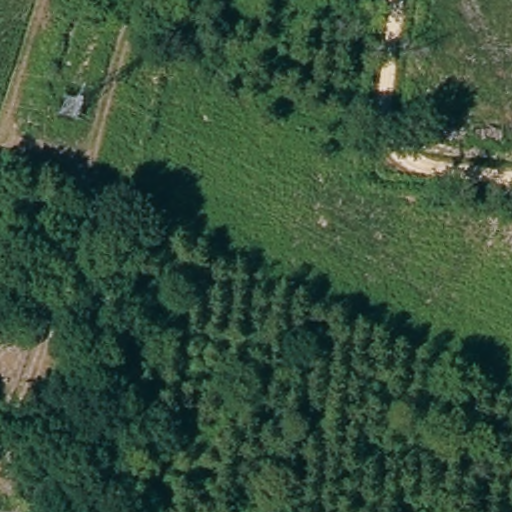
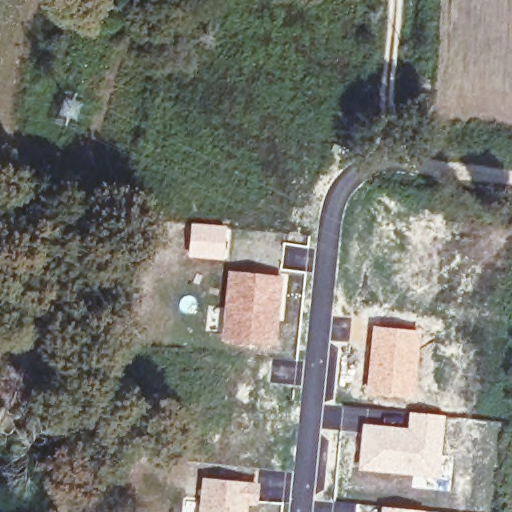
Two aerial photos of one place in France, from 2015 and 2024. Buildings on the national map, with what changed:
new [(191,222),(228,226),(226,260),(188,257),(191,222)]
new [(227,270),(282,276),(277,346),(220,340),(227,270)]
new [(373,325),(422,331),(415,397),(365,393),(373,325)]
new [(362,423),(407,427),(409,411),(445,415),(439,478),(358,470),(362,423)]
new [(259,483),(257,503),(249,502),(248,512),(199,512),(202,476),(259,483)]
new [(426,510),(426,512),(381,512),(381,506),(426,510)]

